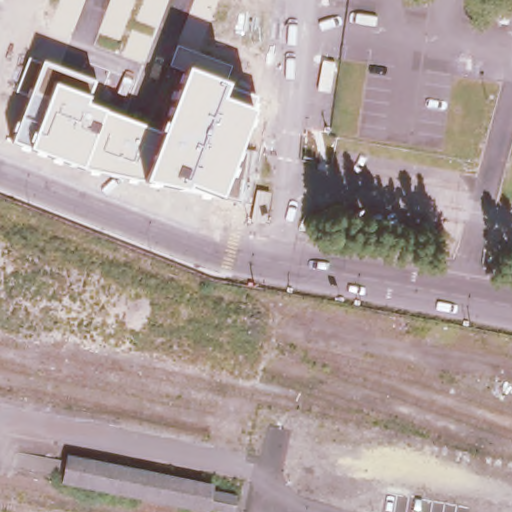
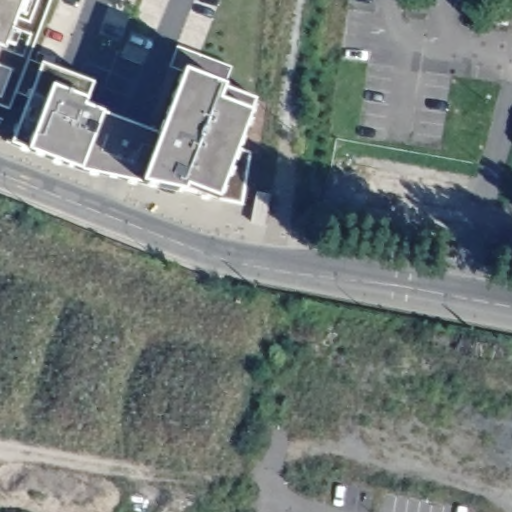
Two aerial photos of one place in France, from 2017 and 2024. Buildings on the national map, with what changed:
new [(41,61),(27,98),(15,93),(8,110),(0,107),(0,0),(51,0),(30,58),(41,61)]
unchanged [(231,66),(224,84),(185,69),(171,64),(178,45),(231,66)]
unchanged [(94,82),(87,98),(52,85),(28,149),(11,143),(41,61),(94,82)]
unchanged [(218,199),(187,185),(185,191),(143,182),(161,133),(185,69),(224,84),(257,97),(237,148),(249,151),(242,203),(218,199)]
unchanged [(52,85),(87,98),(85,104),(103,111),(82,169),(28,149),(52,85)]
unchanged [(103,111),(161,133),(143,182),(82,169),(103,111)]
demolished [(293,230),(278,228),(285,198),(297,200),(293,230)]
demolished [(65,457),(214,483),(213,489),(237,494),(232,512),(213,512),(62,484),(65,457)]

